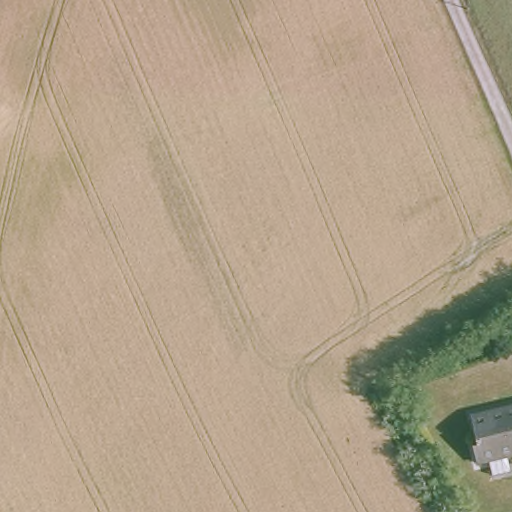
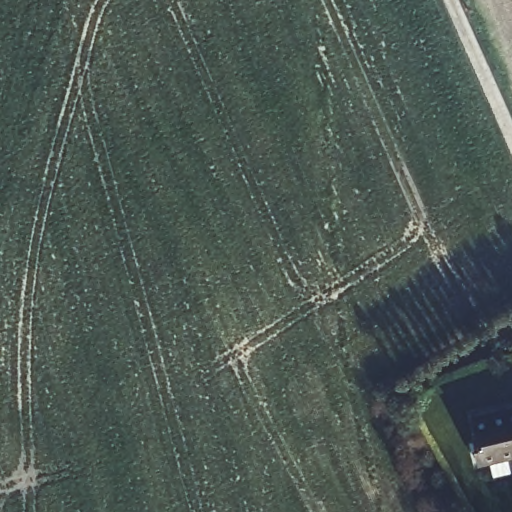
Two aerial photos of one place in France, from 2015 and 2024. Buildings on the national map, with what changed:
unchanged [(467,413),(512,404),(512,458),(478,465),(467,413)]

